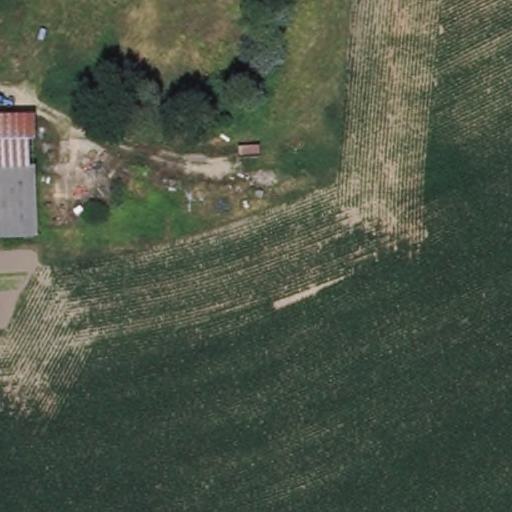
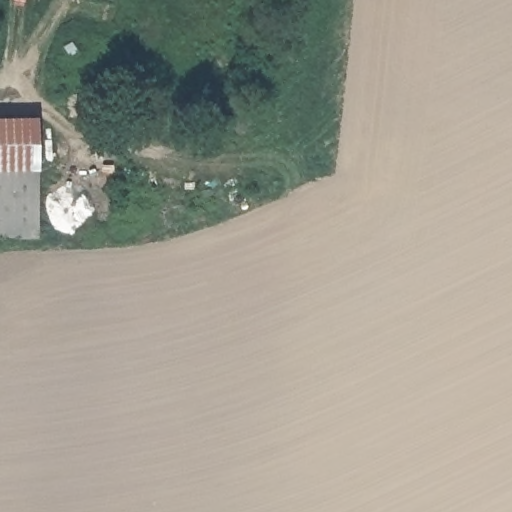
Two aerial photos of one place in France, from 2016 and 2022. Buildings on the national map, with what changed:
unchanged [(2,169),(0,169),(0,118),(2,117),(2,169)]
unchanged [(36,117),(37,169),(2,169),(2,117),(36,117)]
unchanged [(1,237),(0,237),(0,169),(2,169),(1,237)]
unchanged [(38,237),(1,237),(2,169),(37,169),(38,237)]

